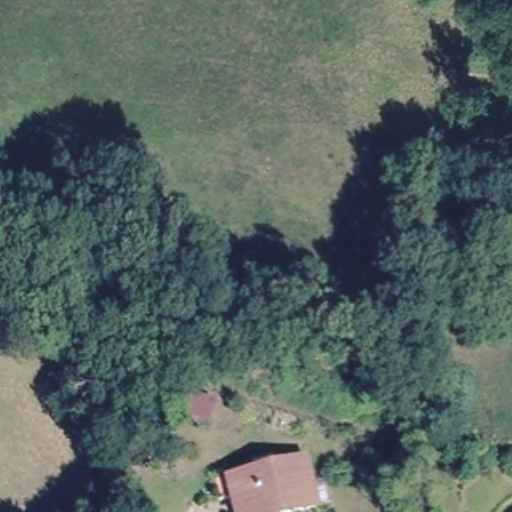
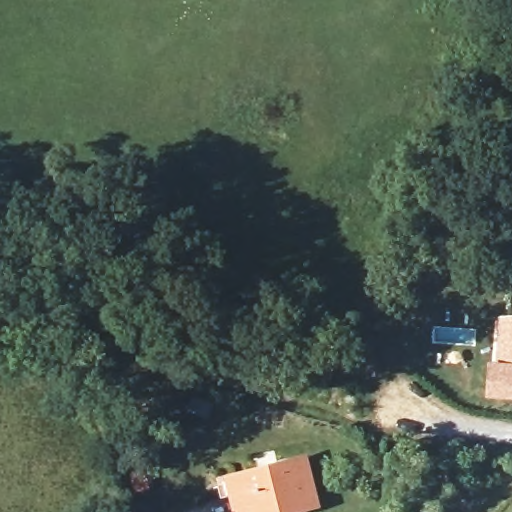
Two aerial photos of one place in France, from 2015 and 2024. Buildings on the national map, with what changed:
new [(493,361),(497,315),(512,314),(512,399),(485,397),(488,361),(493,361)]
unchanged [(230,476),(300,457),(312,505),(285,512),(230,512),(221,478),(230,476)]

